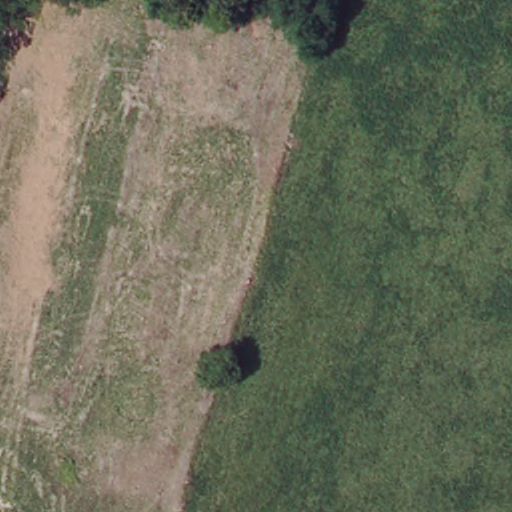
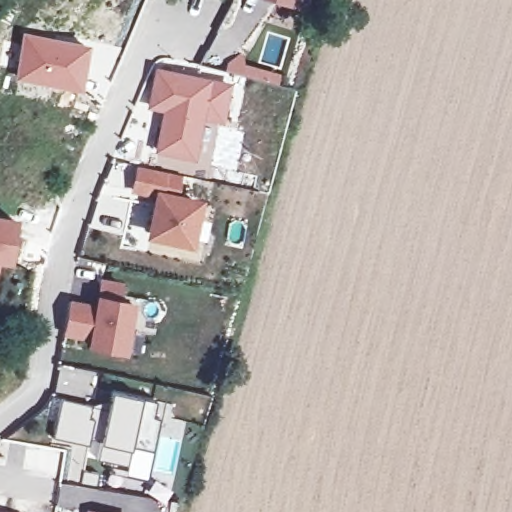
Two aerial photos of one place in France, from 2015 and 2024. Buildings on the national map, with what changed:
new [(269,0),(308,0),(306,9),(269,0)]
new [(23,31),(90,44),(80,92),(15,80),(23,31)]
new [(233,86),(226,122),(206,117),(197,158),(162,151),(171,110),(154,107),(161,72),(233,86)]
new [(183,180),(179,201),(201,205),(193,245),(156,237),(163,198),(138,193),(141,171),(183,180)]
new [(0,221),(20,223),(14,264),(0,262),(0,221)]
new [(101,311),(106,284),(125,287),(123,304),(136,307),(128,355),(95,349),(96,341),(70,336),(75,306),(101,311)]
new [(96,408),(95,410),(112,413),(115,394),(146,400),(132,467),(102,462),(105,444),(94,442),(93,448),(57,441),(65,401),(96,408)]
new [(85,510),(101,512),(85,512),(85,510)]

